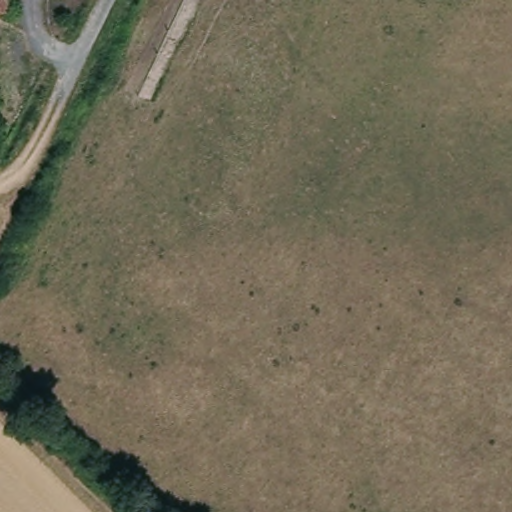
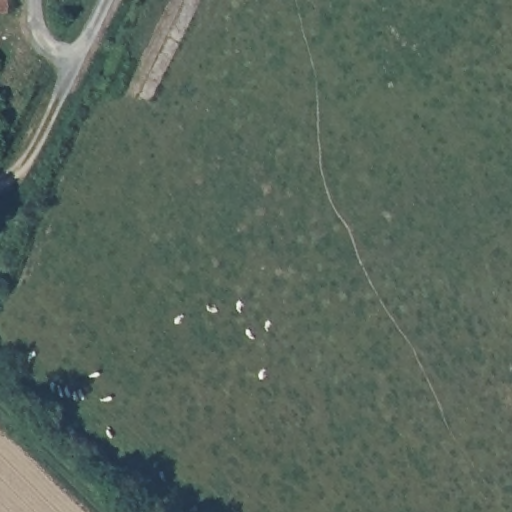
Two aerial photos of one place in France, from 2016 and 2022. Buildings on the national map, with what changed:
unchanged [(0,0),(7,0),(7,12),(0,12),(0,0)]

